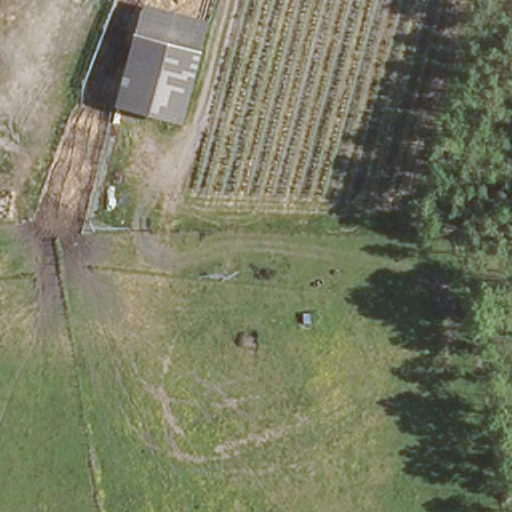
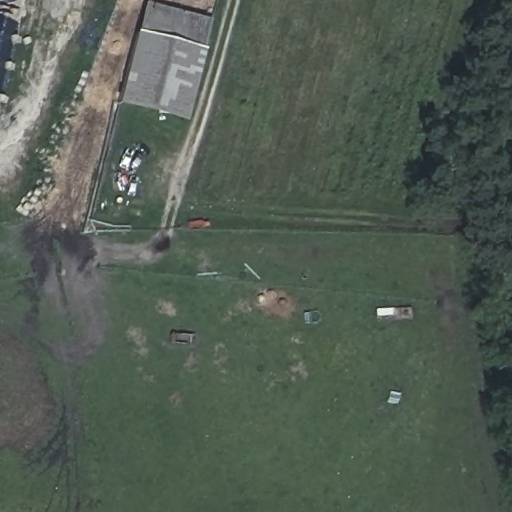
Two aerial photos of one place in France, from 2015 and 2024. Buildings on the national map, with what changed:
unchanged [(205,21),(181,120),(119,104),(144,5),(205,21)]

